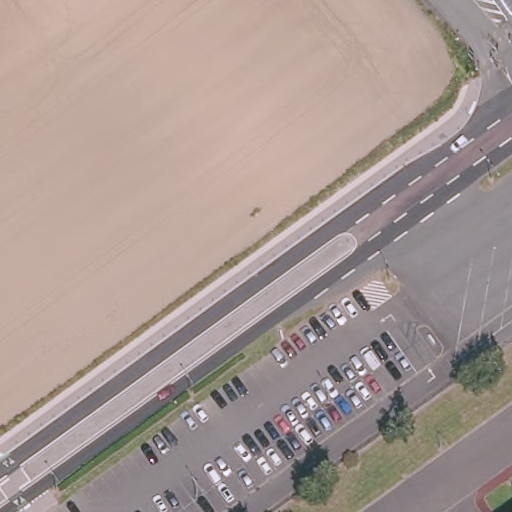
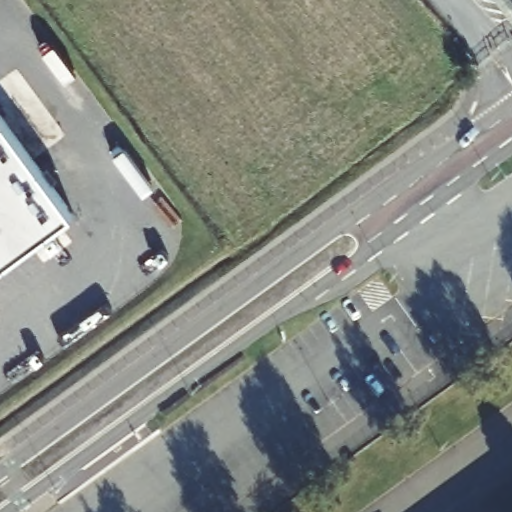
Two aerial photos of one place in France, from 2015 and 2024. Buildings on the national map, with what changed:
new [(0,266),(0,115),(72,211),(0,266)]

